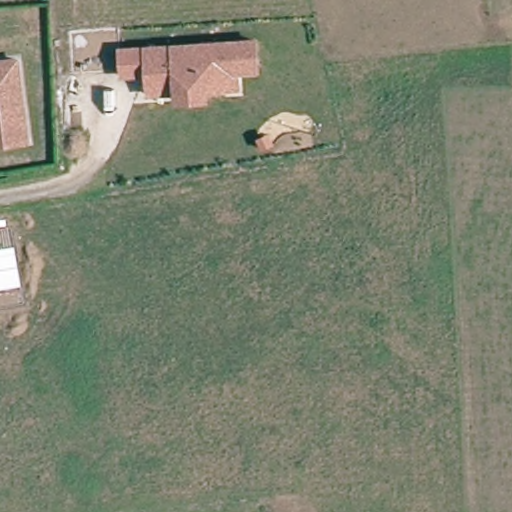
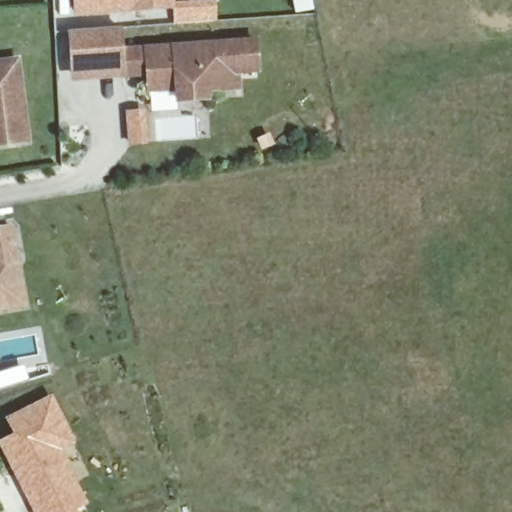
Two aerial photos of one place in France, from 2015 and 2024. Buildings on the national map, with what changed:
new [(216,0),(218,25),(174,26),(173,10),(74,19),(73,0),(175,0),(175,4),(216,0)]
new [(64,83),(61,33),(117,30),(118,47),(120,79),(64,83)]
unchanged [(241,75),(241,92),(210,94),(210,102),(174,104),(173,97),(144,98),(143,78),(120,79),(118,47),(259,38),(261,73),(241,75)]
unchanged [(32,142),(0,147),(0,65),(23,62),(32,142)]
unchanged [(0,230),(11,227),(21,288),(25,305),(0,310),(0,230)]
new [(61,452),(88,505),(76,512),(33,512),(0,449),(0,441),(13,434),(4,419),(51,395),(77,444),(61,452)]

